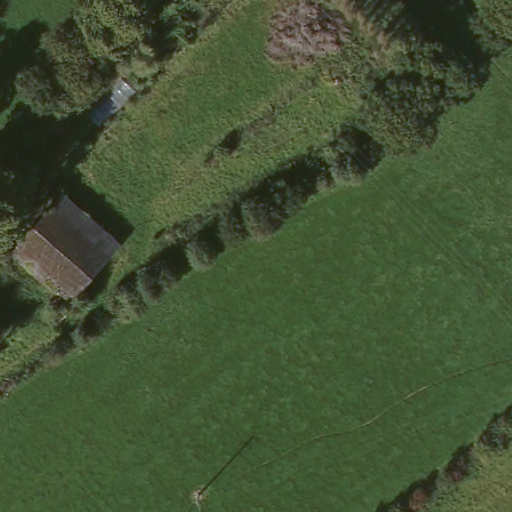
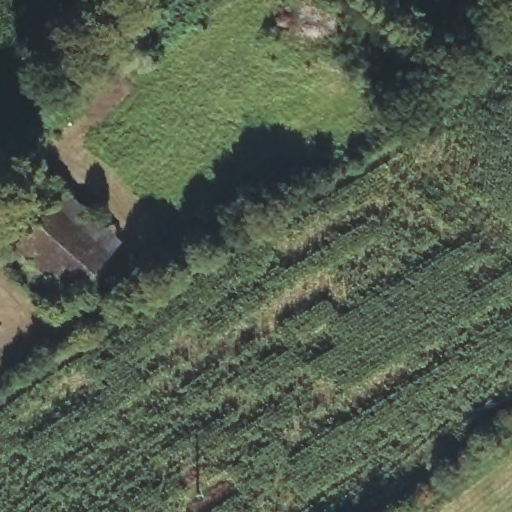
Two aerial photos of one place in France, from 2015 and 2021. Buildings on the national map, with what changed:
unchanged [(118,256),(64,305),(11,252),(64,202),(118,256)]

